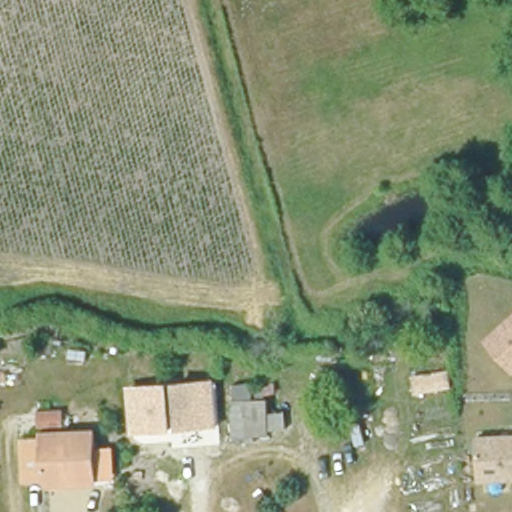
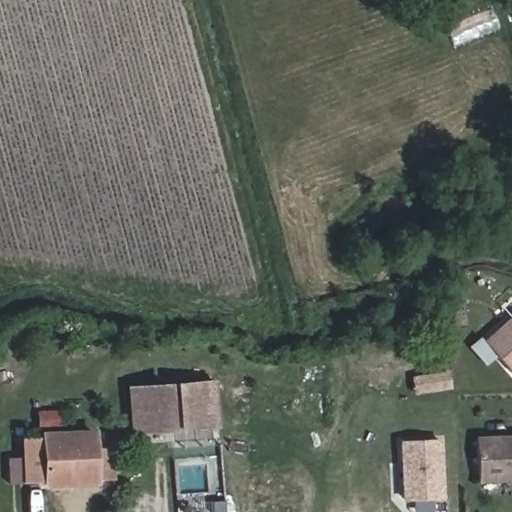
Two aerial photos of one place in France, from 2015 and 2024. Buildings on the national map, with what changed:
unchanged [(512,322),(512,374),(486,345),(512,322)]
unchanged [(455,391),(414,395),(412,377),(451,372),(455,391)]
unchanged [(220,426),(132,432),(129,385),(219,377),(220,426)]
unchanged [(271,400),(273,436),(236,437),(234,401),(271,400)]
unchanged [(25,433),(46,433),(46,431),(95,431),(96,481),(46,482),(46,480),(25,480),(25,433)]
new [(400,441),(442,438),(445,499),(403,501),(400,441)]
unchanged [(479,442),(512,442),(512,481),(479,481),(479,442)]

